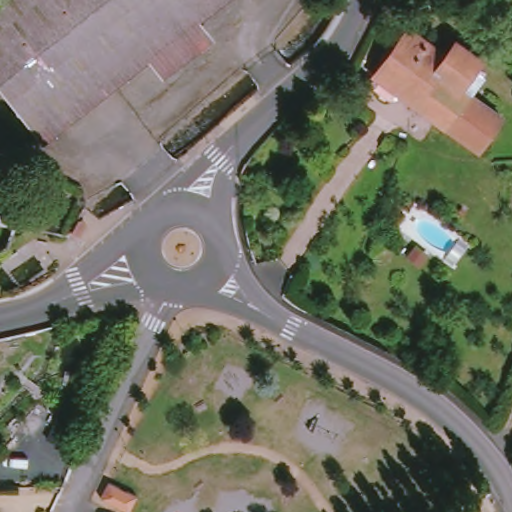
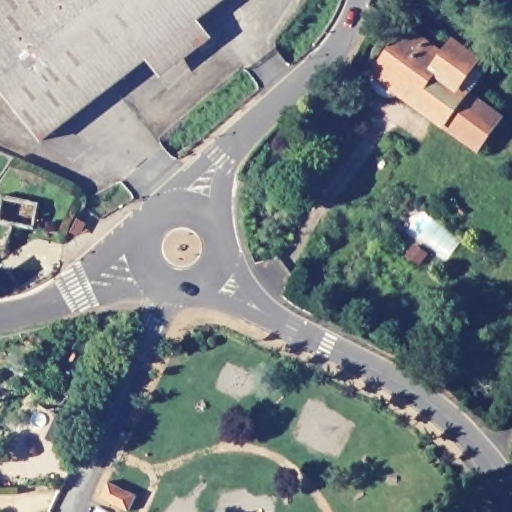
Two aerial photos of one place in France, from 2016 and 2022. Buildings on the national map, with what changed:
unchanged [(38,135),(0,85),(0,0),(212,0),(38,135)]
unchanged [(145,52),(195,14),(215,40),(164,79),(145,52)]
unchanged [(403,28),(440,54),(450,41),(475,59),(455,88),(497,118),(473,151),(370,76),(403,28)]
unchanged [(70,229),(77,218),(85,222),(78,233),(70,229)]
unchanged [(140,493),(134,510),(105,498),(110,481),(140,493)]

